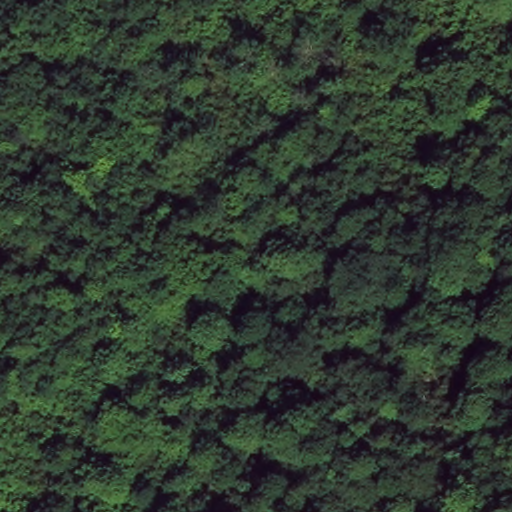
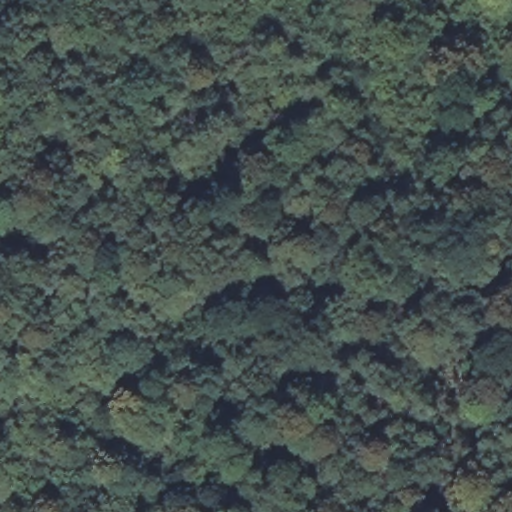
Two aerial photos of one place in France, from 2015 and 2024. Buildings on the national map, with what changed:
[]

